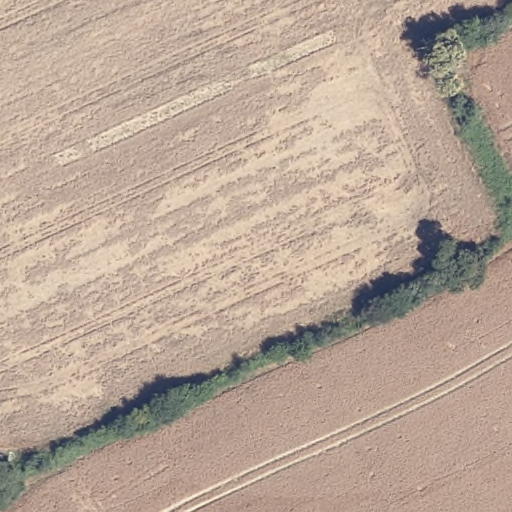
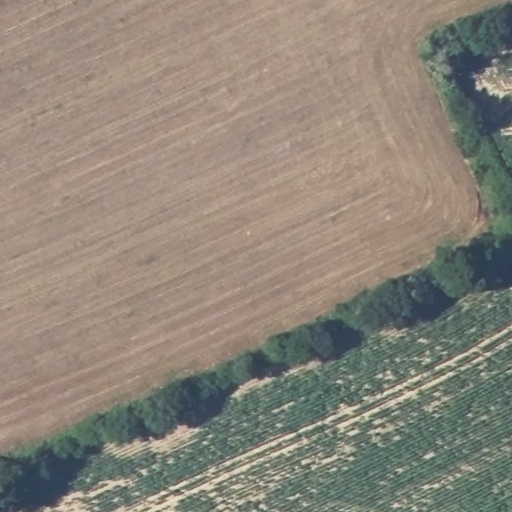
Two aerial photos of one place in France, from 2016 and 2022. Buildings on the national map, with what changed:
[]

